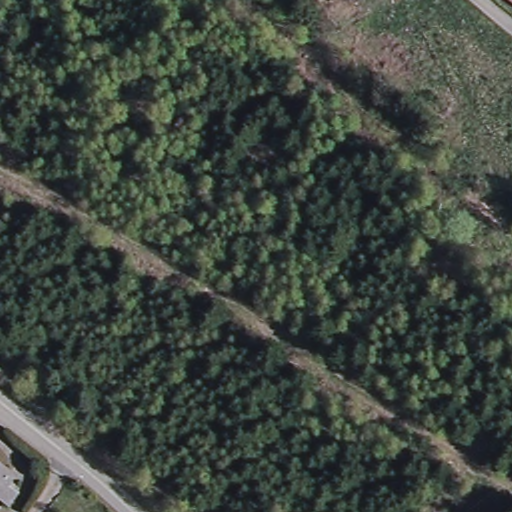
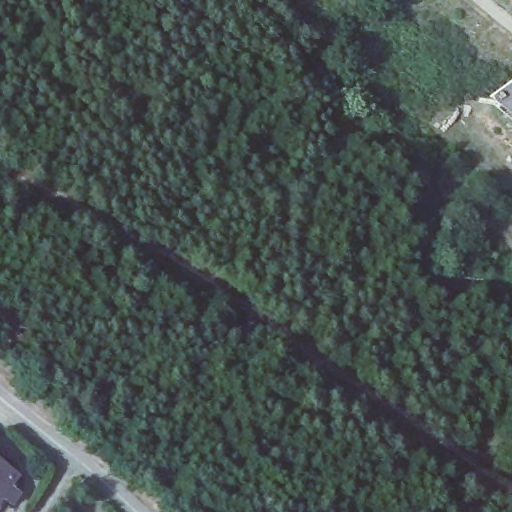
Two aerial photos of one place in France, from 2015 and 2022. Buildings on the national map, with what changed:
unchanged [(0,490),(0,466),(11,474),(0,490)]

